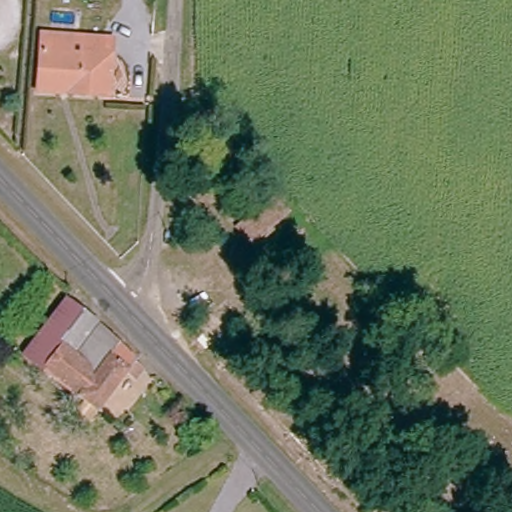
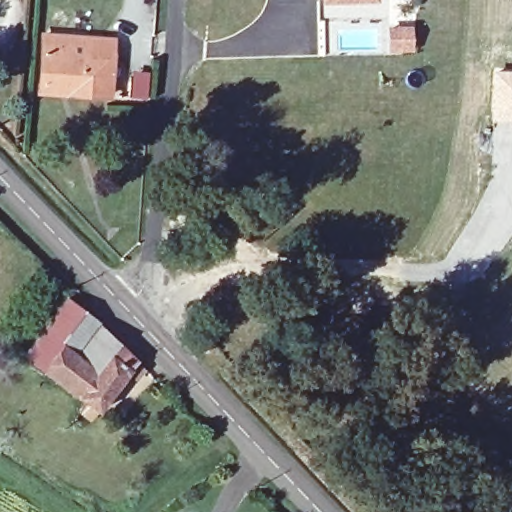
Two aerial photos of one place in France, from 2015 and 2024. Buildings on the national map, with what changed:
new [(320,2),(319,0),(377,0),(378,2),(320,2)]
new [(413,24),(413,52),(388,53),(386,26),(413,24)]
unchanged [(44,95),(46,37),(99,40),(98,59),(112,60),(111,99),(44,95)]
new [(493,67),(512,68),(512,121),(491,120),(493,67)]
unchanged [(257,246),(238,228),(269,195),(287,213),(257,246)]
unchanged [(26,358),(71,296),(143,358),(98,415),(26,358)]

